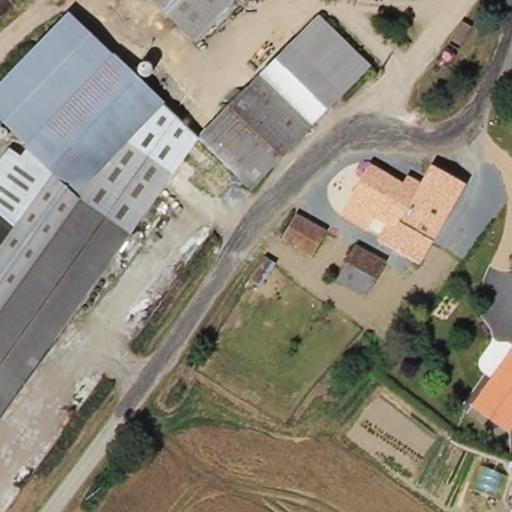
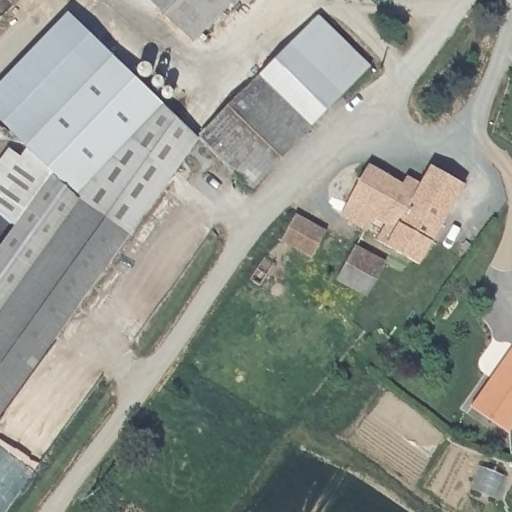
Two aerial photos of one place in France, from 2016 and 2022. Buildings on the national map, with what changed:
unchanged [(158,0),(212,0),(186,27),(158,0)]
unchanged [(17,220),(0,209),(0,160),(8,149),(20,156),(25,147),(0,121),(0,81),(67,13),(143,83),(160,67),(197,101),(160,140),(145,126),(127,141),(174,172),(0,417),(0,244),(17,220)]
unchanged [(317,16),(372,68),(251,190),(238,176),(219,195),(177,155),(317,16)]
unchanged [(402,189),(408,180),(422,188),(432,171),(462,189),(415,265),(378,243),(392,219),(380,213),(370,229),(343,212),(370,169),(402,189)]
unchanged [(318,236),(305,259),(277,243),(290,219),(318,236)]
unchanged [(386,263),(367,300),(331,283),(351,247),(386,263)]
unchanged [(475,409),(512,349),(512,431),(511,432),(475,409)]

